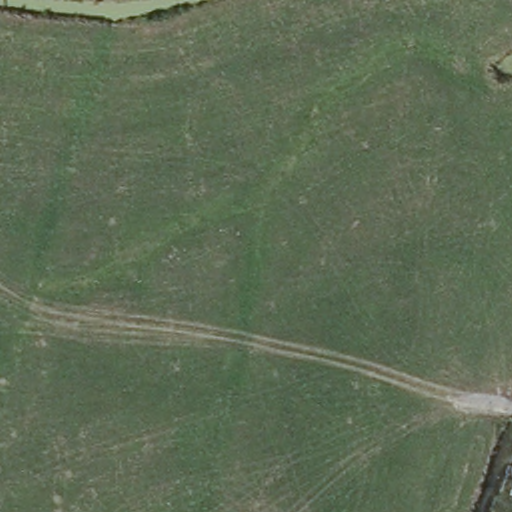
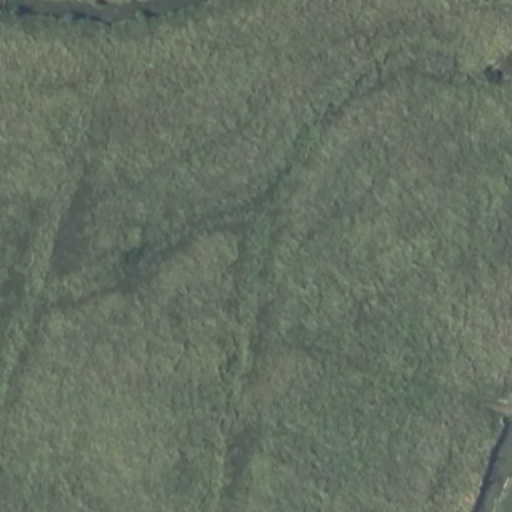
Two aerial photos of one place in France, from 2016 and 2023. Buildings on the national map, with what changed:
[]

